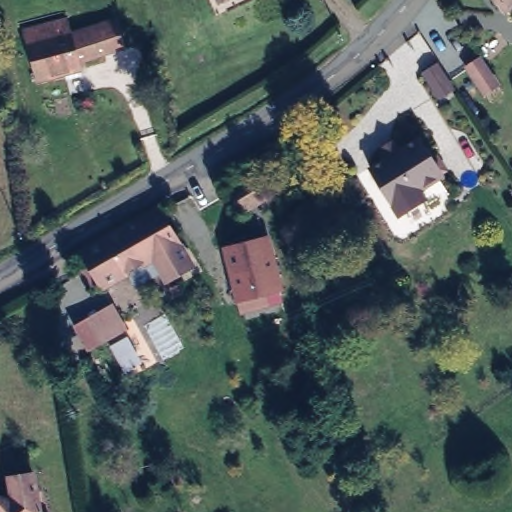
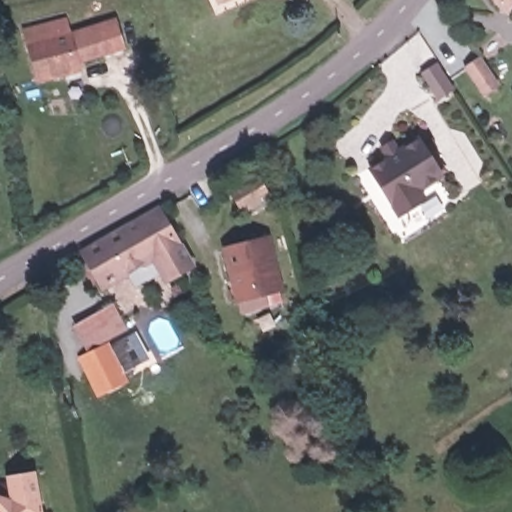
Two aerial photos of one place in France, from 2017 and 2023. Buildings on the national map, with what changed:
unchanged [(508,16),(496,0),(512,0),(512,13),(508,16)]
unchanged [(64,35),(80,30),(80,34),(110,26),(119,55),(75,63),(77,71),(35,80),(23,37),(64,27),(64,35)]
unchanged [(482,82),(470,91),(452,66),(466,58),(482,82)]
unchanged [(439,90),(427,97),(410,72),(423,64),(439,90)]
unchanged [(444,179),(419,193),(424,200),(401,217),(371,175),(419,143),(444,179)]
unchanged [(231,183),(253,168),(266,190),(242,204),(231,183)]
unchanged [(108,226),(153,200),(185,255),(161,270),(149,251),(100,279),(78,244),(108,226)]
unchanged [(283,291),(236,305),(220,246),(268,234),(283,291)]
unchanged [(85,351),(70,323),(113,300),(128,330),(85,351)]
new [(96,398),(78,358),(108,343),(128,383),(96,398)]
unchanged [(0,512),(0,504),(14,507),(17,505),(15,485),(37,483),(43,512),(0,512)]

